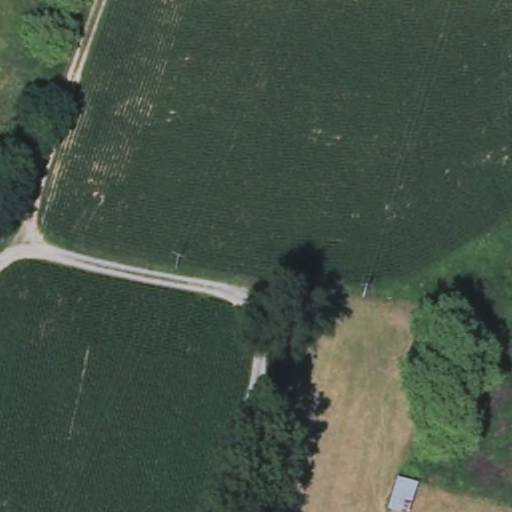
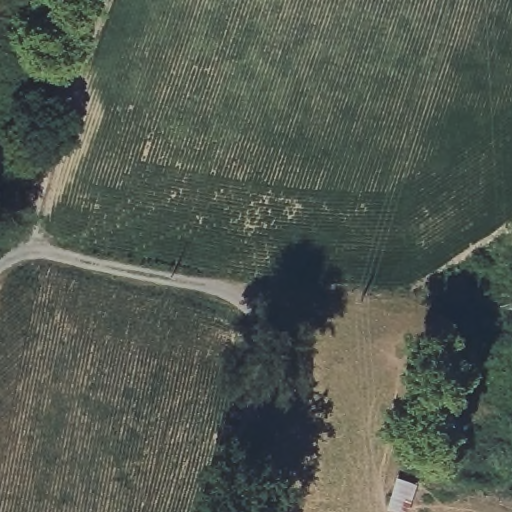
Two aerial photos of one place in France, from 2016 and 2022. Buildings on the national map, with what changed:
unchanged [(418,478),(410,512),(398,512),(386,508),(392,471),(418,478)]

